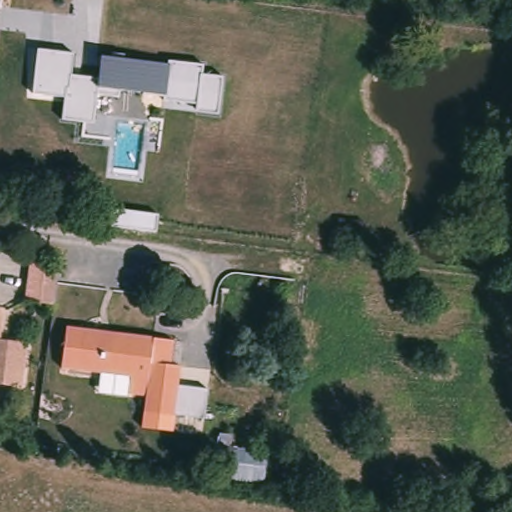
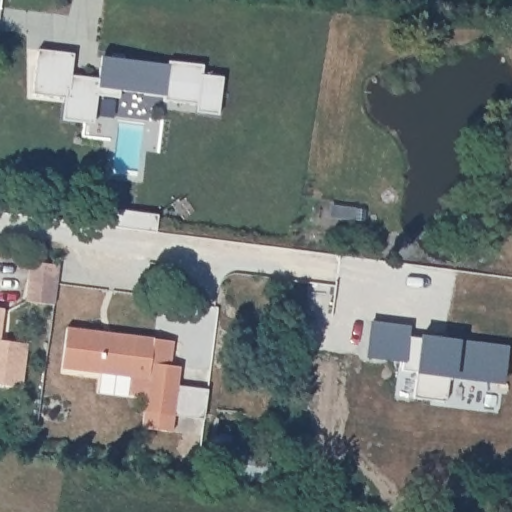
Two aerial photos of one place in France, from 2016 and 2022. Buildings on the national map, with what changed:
unchanged [(73,53),(72,74),(98,78),(101,56),(167,65),(167,61),(203,64),(202,75),(222,77),(219,115),(196,112),(197,103),(165,99),(166,95),(121,91),(120,99),(97,96),(94,124),(62,120),(64,96),(32,93),(37,49),(73,53)]
new [(108,208),(159,215),(156,233),(106,226),(108,208)]
unchanged [(59,266),(54,306),(24,303),(29,263),(59,266)]
unchanged [(0,337),(0,309),(4,309),(0,337)]
new [(455,378),(449,377),(446,399),(414,396),(415,372),(415,370),(403,369),(405,361),(367,357),(372,321),(408,324),(407,336),(421,339),(421,334),(460,339),(504,345),(501,383),(455,378)]
unchanged [(134,417),(139,383),(61,373),(67,333),(99,337),(99,341),(112,342),(113,339),(154,344),(174,346),(170,371),(164,421),(134,417)]
unchanged [(22,387),(0,384),(0,341),(27,344),(22,387)]

